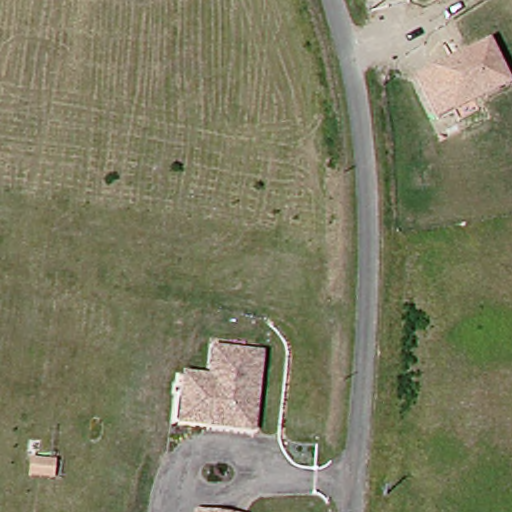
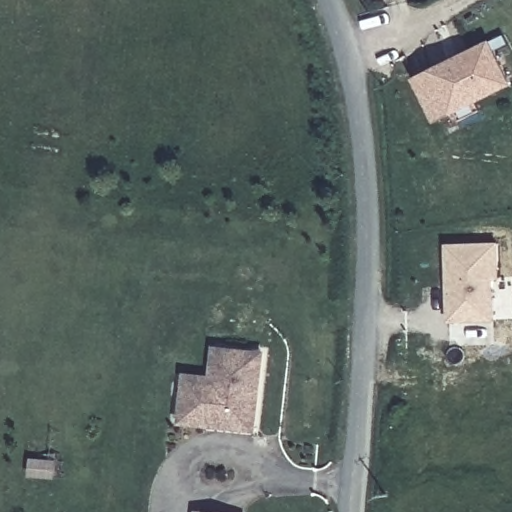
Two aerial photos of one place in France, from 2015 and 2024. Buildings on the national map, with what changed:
unchanged [(512,86),(512,87),(438,122),(416,79),(492,43),(512,86)]
new [(471,320),(449,322),(446,246),(495,244),(497,278),(491,278),(491,298),(492,320),(471,320)]
unchanged [(250,434),(176,424),(182,390),(205,391),(213,350),(261,355),(250,434)]
unchanged [(190,509),(209,512),(190,512),(190,509)]

